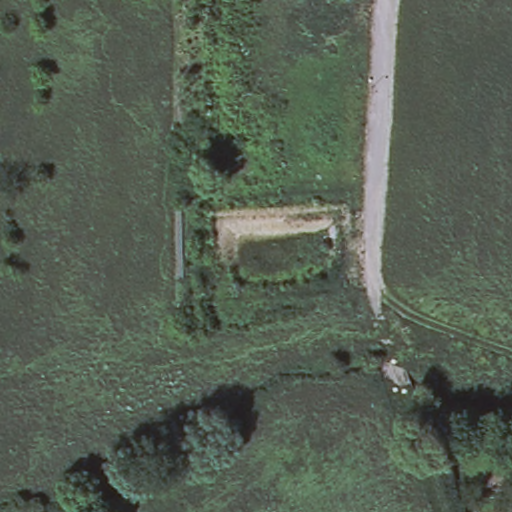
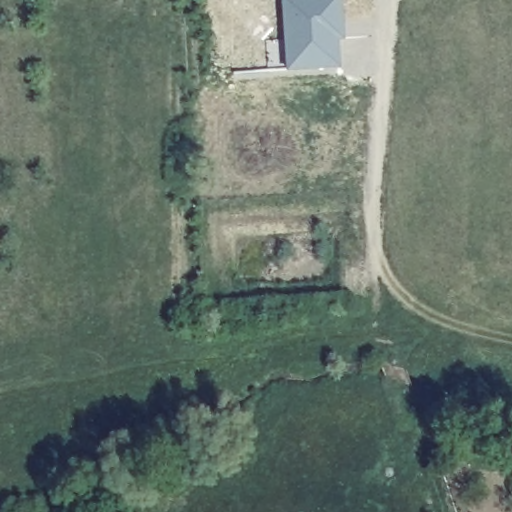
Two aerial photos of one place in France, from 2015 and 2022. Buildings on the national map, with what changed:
new [(345,39),(340,40),(341,67),(288,70),(283,0),(342,0),(345,39)]

